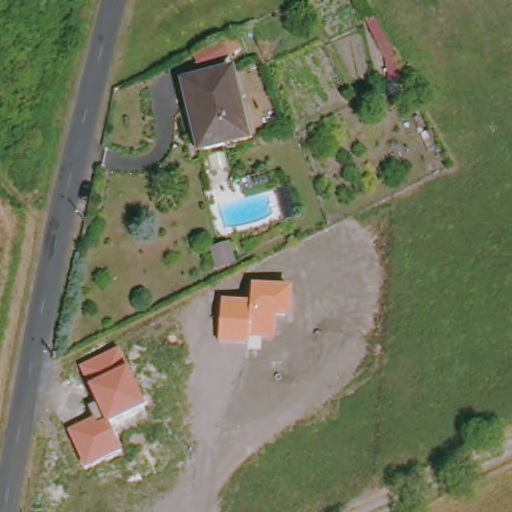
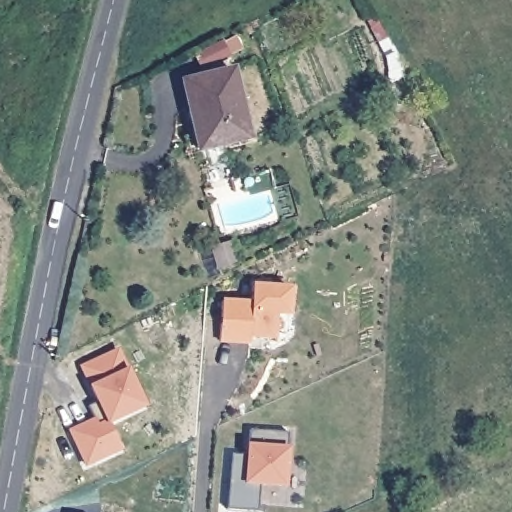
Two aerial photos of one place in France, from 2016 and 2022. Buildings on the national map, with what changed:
unchanged [(229,72),(242,140),(195,149),(182,81),(229,72)]
unchanged [(251,301),(252,283),(293,286),(291,317),(277,315),(276,341),(261,340),(259,353),(247,352),(247,345),(218,344),(222,299),(251,301)]
unchanged [(146,406),(109,424),(120,450),(84,467),(67,431),(92,419),(88,408),(96,404),(89,390),(87,391),(77,369),(119,347),(146,406)]
new [(259,486),(259,511),(227,509),(232,455),(245,457),(247,445),(249,431),(287,433),(288,448),(287,488),(259,486)]

